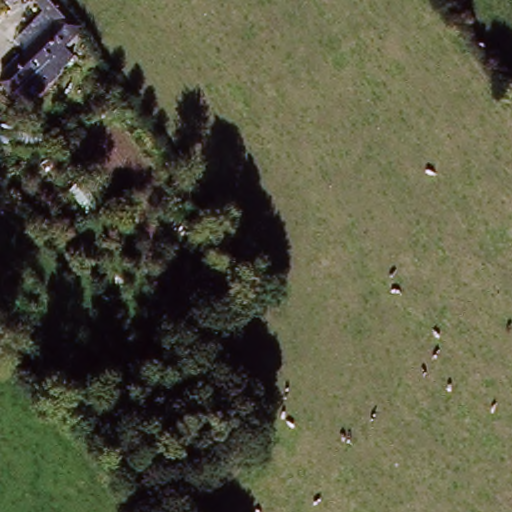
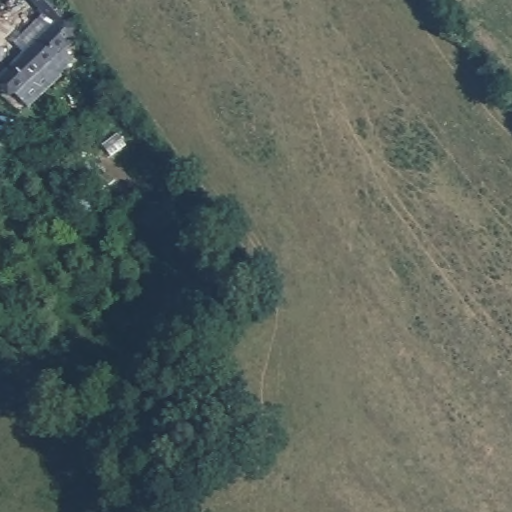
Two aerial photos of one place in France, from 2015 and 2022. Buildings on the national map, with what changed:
unchanged [(56,21),(47,10),(38,0),(56,0),(57,1),(65,13),(79,32),(45,64),(60,80),(38,100),(26,88),(16,97),(0,81),(0,77),(56,21)]

